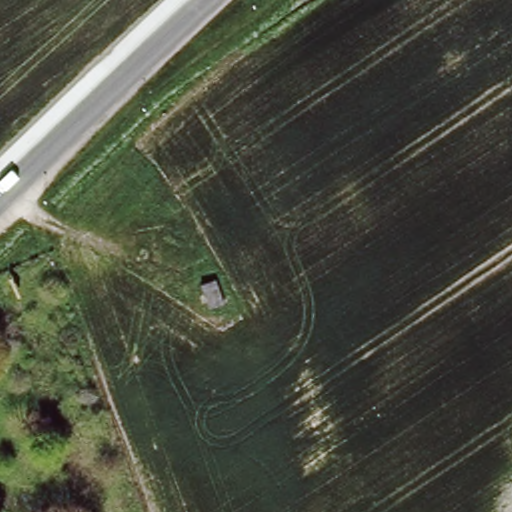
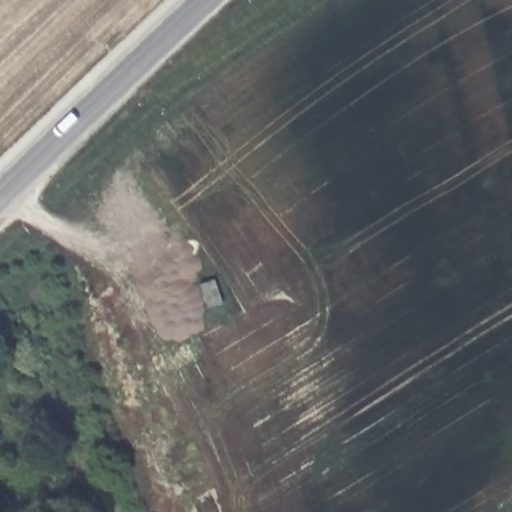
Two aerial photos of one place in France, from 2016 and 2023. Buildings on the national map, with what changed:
unchanged [(226,305),(211,314),(200,287),(216,280),(226,305)]

